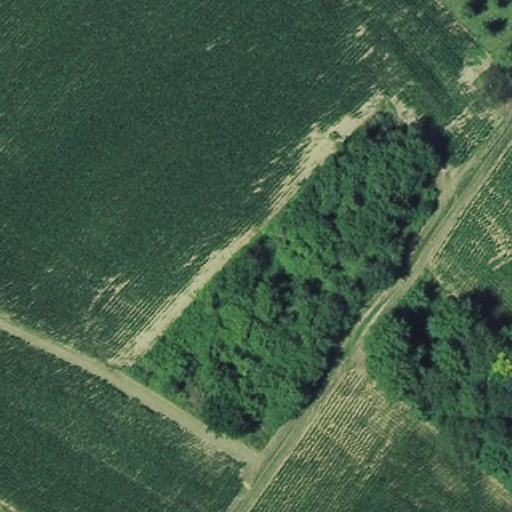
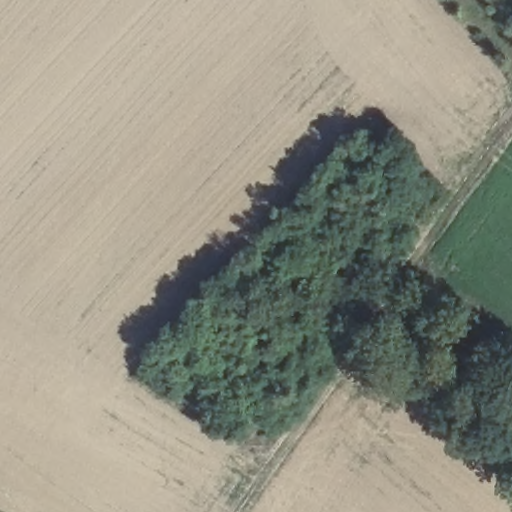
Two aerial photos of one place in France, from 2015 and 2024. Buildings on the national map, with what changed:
[]

